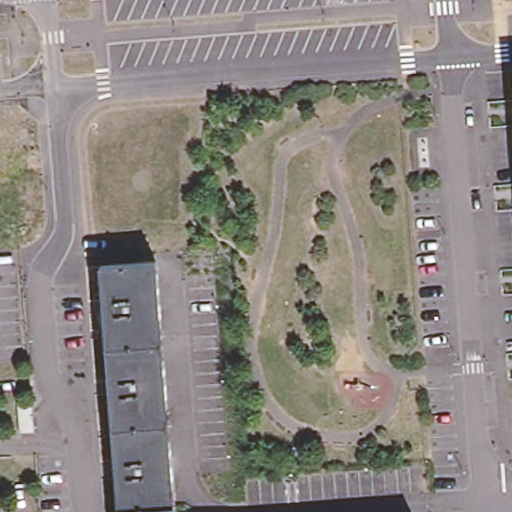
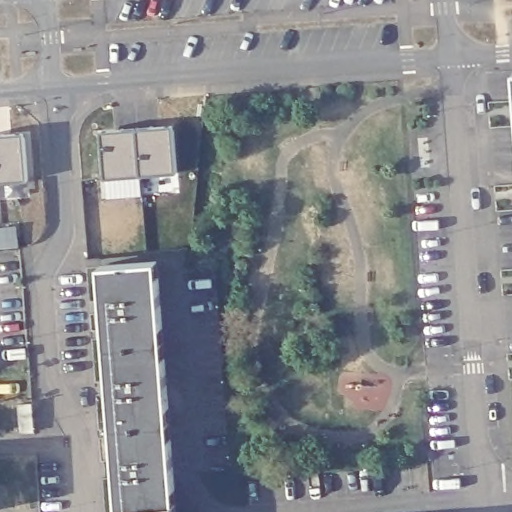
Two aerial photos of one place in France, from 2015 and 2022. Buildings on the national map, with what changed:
new [(174,125),(178,171),(106,178),(102,131),(174,125)]
new [(27,179),(0,181),(0,135),(24,133),(27,179)]
unchanged [(175,512),(120,512),(101,262),(156,259),(175,512)]

